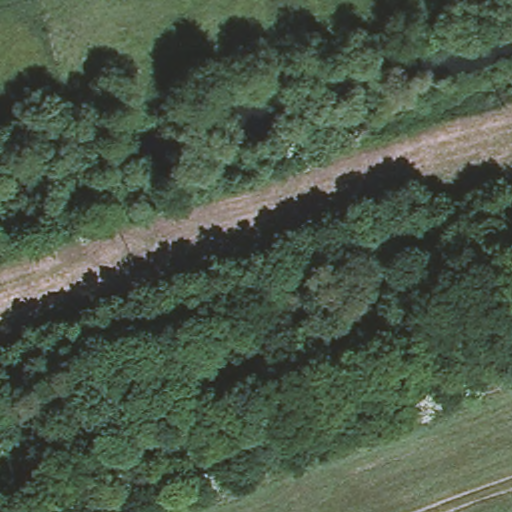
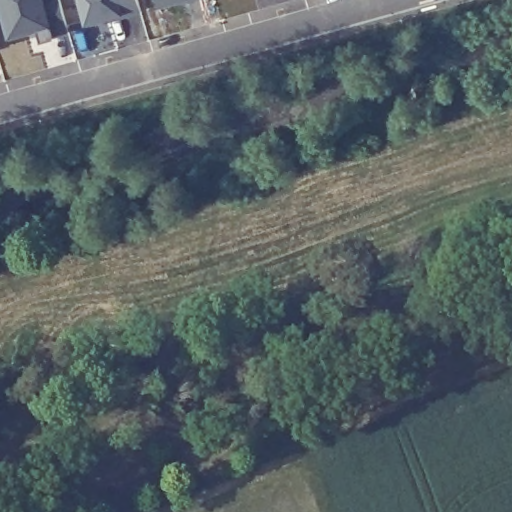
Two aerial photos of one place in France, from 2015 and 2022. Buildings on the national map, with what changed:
new [(5,42),(0,22),(0,0),(43,0),(52,29),(5,42)]
new [(82,30),(75,0),(136,0),(140,14),(82,30)]
new [(152,0),(185,0),(155,9),(152,0)]

